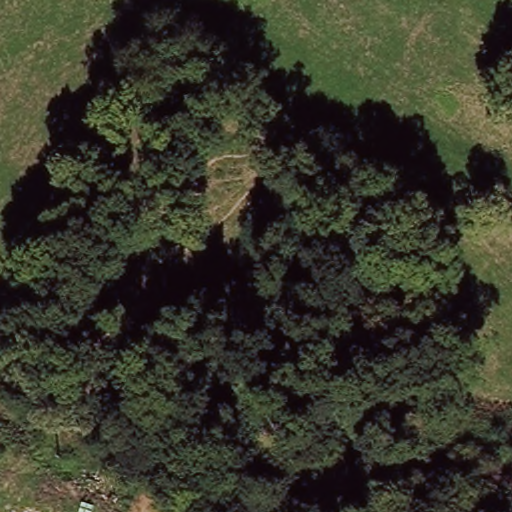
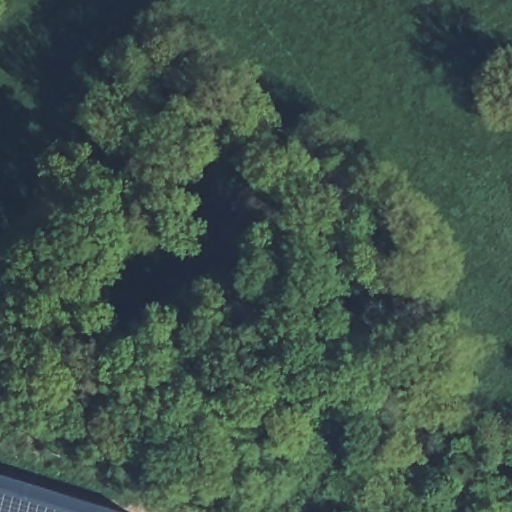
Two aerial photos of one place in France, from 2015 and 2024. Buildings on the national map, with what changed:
new [(0,473),(126,512),(0,512),(0,473)]

